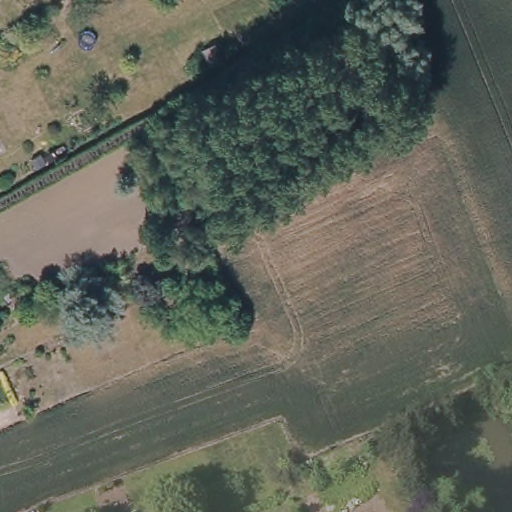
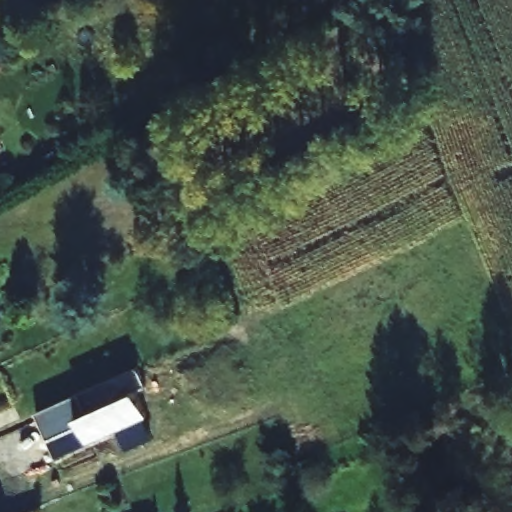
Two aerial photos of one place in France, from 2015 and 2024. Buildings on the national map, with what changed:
new [(36,412),(136,367),(146,389),(137,392),(148,417),(143,420),(152,440),(126,452),(117,431),(56,458),(36,412)]

